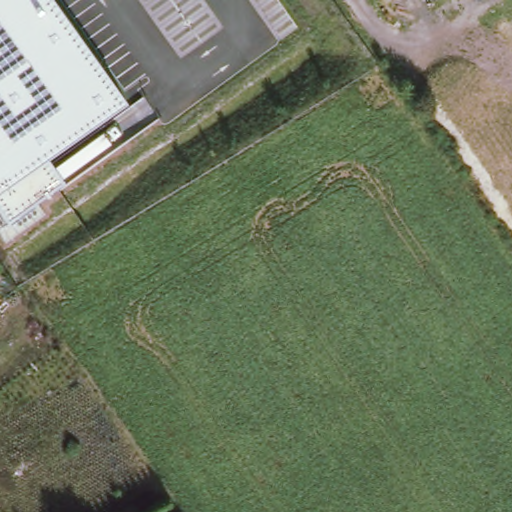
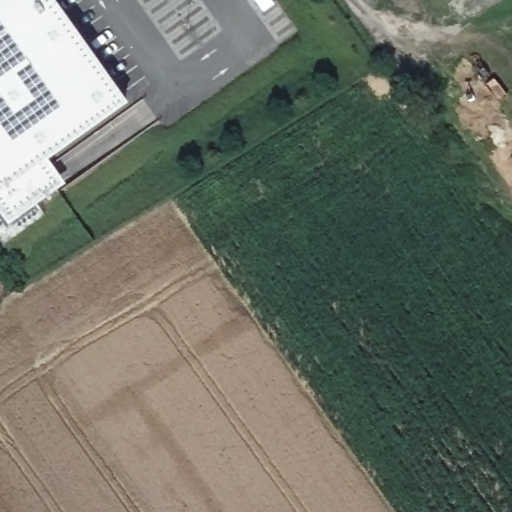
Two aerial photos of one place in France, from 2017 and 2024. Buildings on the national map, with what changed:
unchanged [(54,0),(126,101),(48,157),(65,182),(7,221),(0,211),(0,0),(54,0)]

